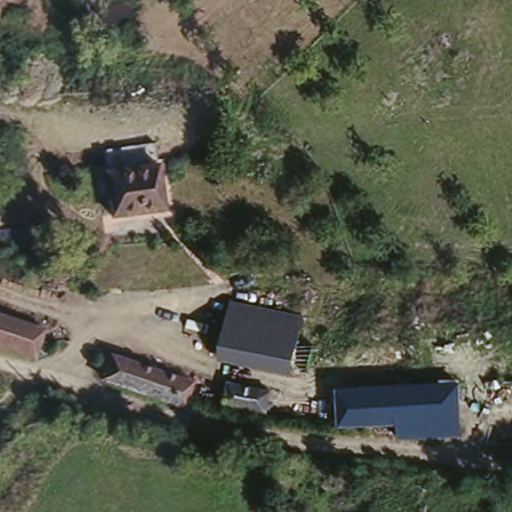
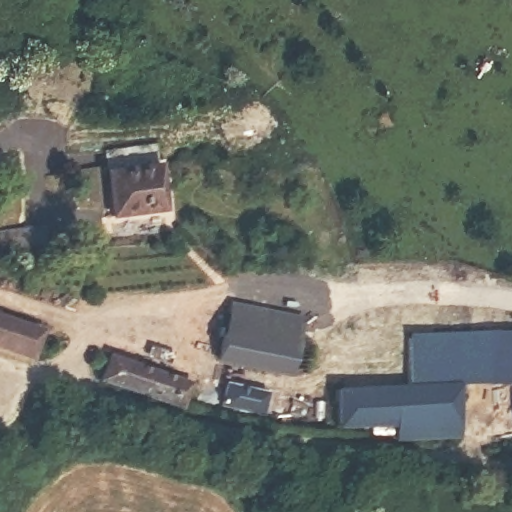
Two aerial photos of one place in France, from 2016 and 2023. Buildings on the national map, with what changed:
unchanged [(110,92),(109,102),(98,102),(101,91),(110,92)]
unchanged [(164,209),(112,216),(106,172),(156,164),(164,209)]
unchanged [(223,318),(227,303),(306,315),(301,333),(223,318)]
unchanged [(50,329),(43,355),(0,343),(0,315),(50,329)]
unchanged [(220,335),(223,318),(301,333),(297,348),(220,335)]
unchanged [(292,378),(214,365),(220,335),(297,348),(292,378)]
new [(406,336),(488,335),(489,384),(458,385),(408,390),(406,336)]
unchanged [(191,406),(182,404),(114,382),(122,359),(188,382),(200,386),(191,406)]
unchanged [(274,393),(269,413),(221,405),(226,385),(274,393)]
unchanged [(408,390),(458,385),(462,435),(401,441),(399,428),(341,433),(337,397),(408,390)]

